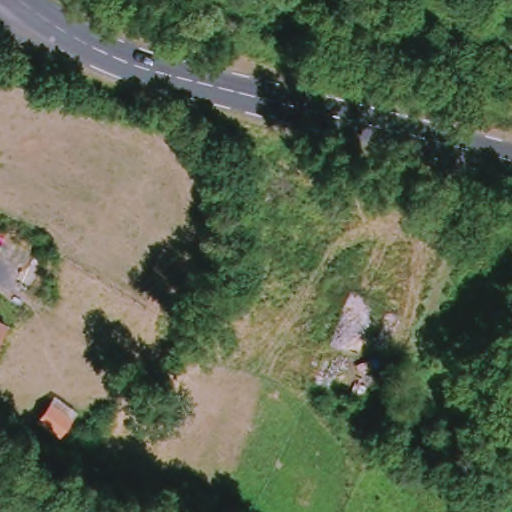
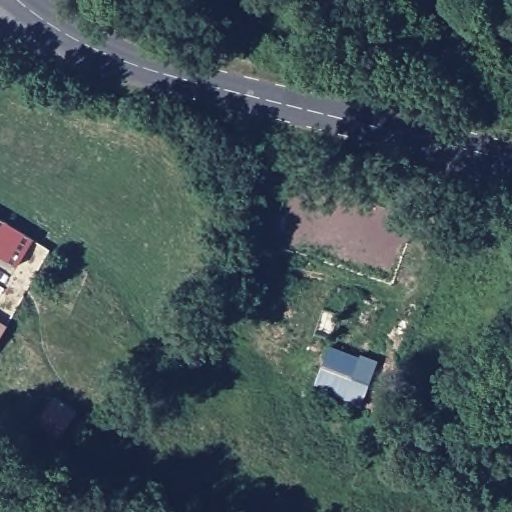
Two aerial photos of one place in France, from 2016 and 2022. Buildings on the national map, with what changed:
unchanged [(4,325),(0,332),(0,323),(4,325)]
new [(363,357),(363,356),(378,362),(363,409),(314,389),(331,346),(363,357)]
unchanged [(48,422),(63,397),(84,411),(68,436),(48,422)]

